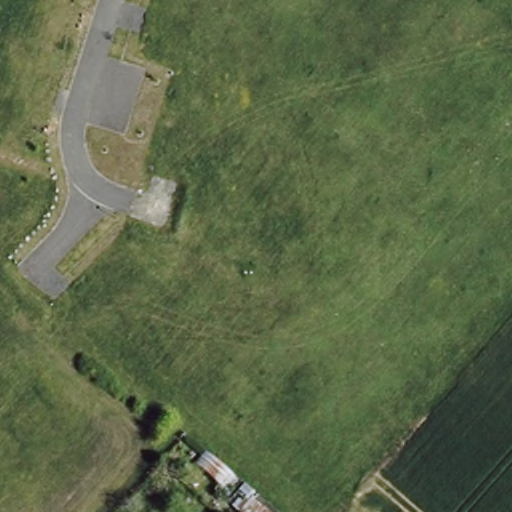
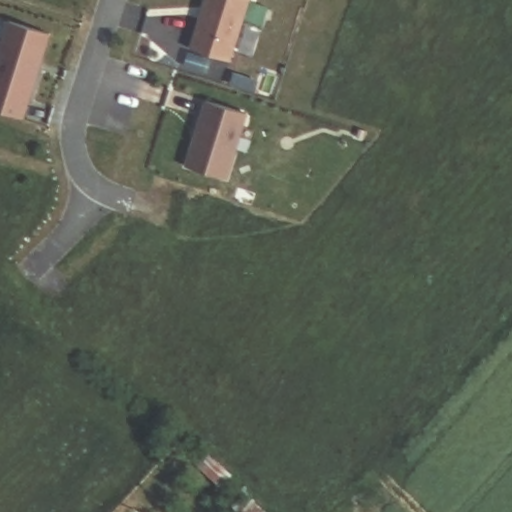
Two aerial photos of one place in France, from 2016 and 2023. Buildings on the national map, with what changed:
new [(265,29),(255,59),(234,52),(232,61),(190,47),(203,0),(250,0),(244,22),(265,29)]
new [(26,119),(0,111),(0,46),(8,19),(52,35),(26,119)]
new [(230,180),(185,166),(205,100),(248,111),(230,180)]
unchanged [(205,450),(238,477),(227,491),(195,463),(205,450)]
unchanged [(245,481),(267,501),(262,506),(271,512),(238,512),(239,510),(233,505),(240,496),(235,492),(245,481)]

